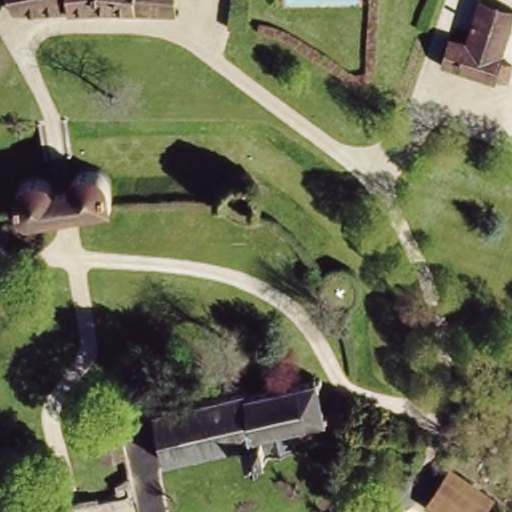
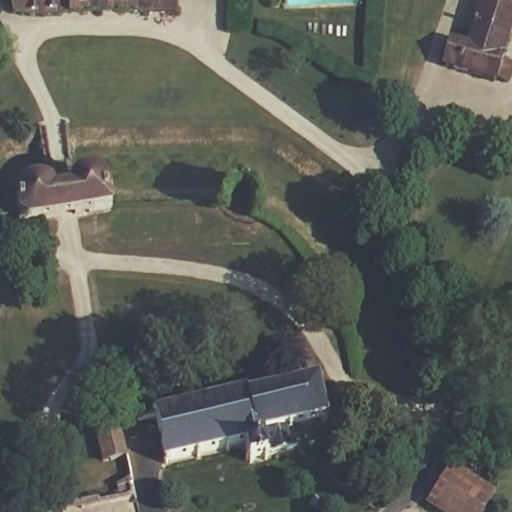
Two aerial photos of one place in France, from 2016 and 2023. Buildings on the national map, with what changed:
unchanged [(35,9),(12,10),(8,0),(89,0),(89,7),(35,9)]
unchanged [(89,7),(89,0),(125,0),(125,5),(89,7)]
unchanged [(125,5),(125,0),(170,0),(170,2),(125,5)]
unchanged [(436,56),(443,36),(452,39),(454,31),(470,36),(482,0),(502,0),(512,3),(512,21),(500,54),(512,58),(512,61),(507,75),(495,71),(494,75),(436,56)]
unchanged [(119,209),(23,222),(23,213),(22,196),(31,186),(50,184),(50,186),(53,193),(75,189),(88,171),(92,171),(100,170),(110,175),(122,205),(119,209)]
unchanged [(220,183),(224,182),(232,180),(235,181),(243,185),(254,207),(209,197),(220,183)]
unchanged [(305,453),(255,461),(252,445),(167,461),(152,411),(213,393),(279,379),(280,386),(315,379),(312,372),(322,369),(324,378),(331,376),(333,385),(327,386),(332,409),(341,407),(343,417),(335,419),(336,425),(328,427),(325,416),(300,422),(304,445),(305,453)]
unchanged [(101,470),(92,439),(100,436),(95,420),(107,417),(121,464),(101,470)]
unchanged [(487,512),(435,512),(429,508),(444,485),(487,512)]

